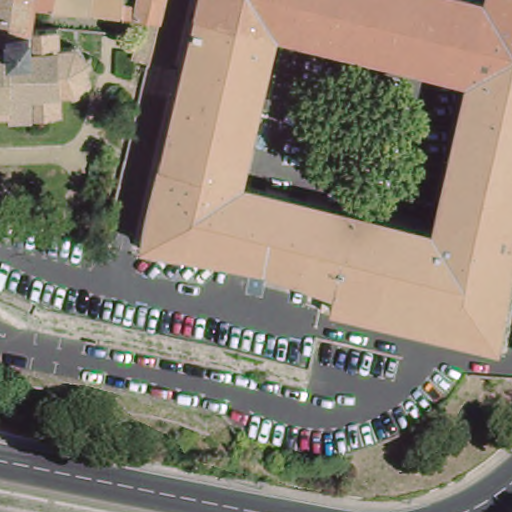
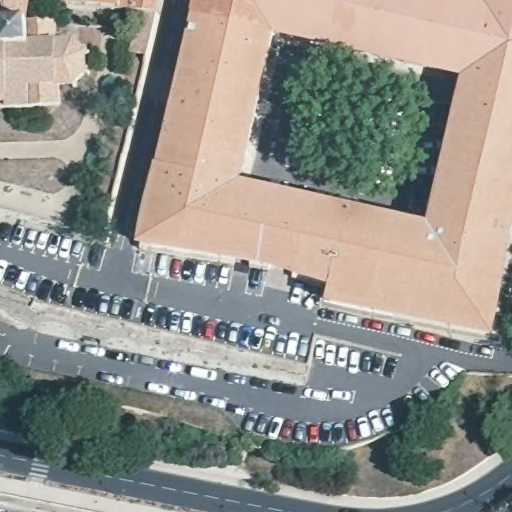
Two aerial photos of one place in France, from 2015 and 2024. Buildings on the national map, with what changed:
unchanged [(0,1),(0,0),(53,0),(53,6),(43,5),(0,1)]
unchanged [(144,13),(53,6),(53,0),(165,0),(162,15),(144,13)]
unchanged [(330,307),(327,290),(260,267),(137,239),(155,159),(158,159),(191,13),(190,9),(192,0),(512,0),(512,284),(501,342),(330,307)]
unchanged [(43,5),(44,26),(61,26),(61,45),(79,44),(91,56),(91,75),(79,89),(63,90),(64,109),(10,111),(0,112),(0,1),(43,5)]
unchanged [(143,88),(128,84),(144,13),(162,15),(143,88)]

